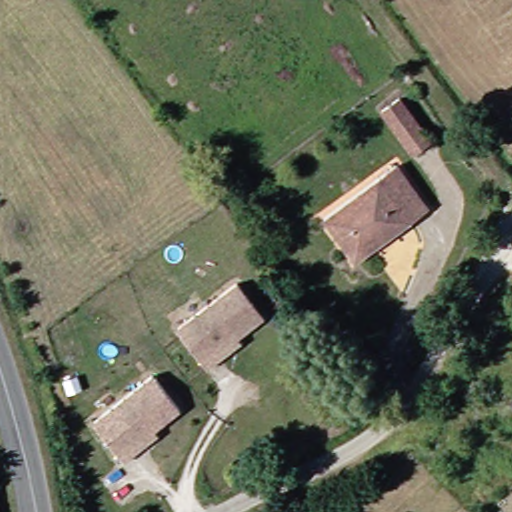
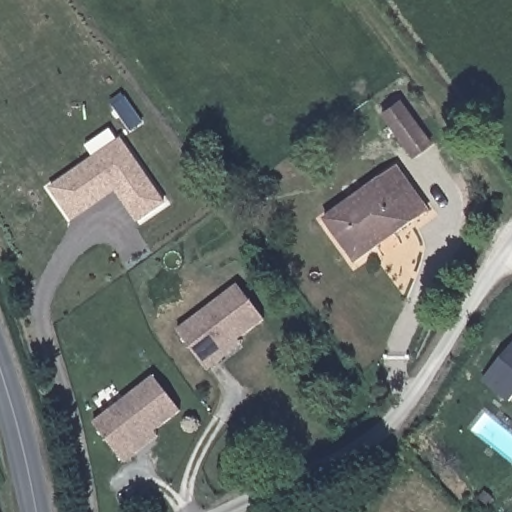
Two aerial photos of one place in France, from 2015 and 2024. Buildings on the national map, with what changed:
unchanged [(417,155),(386,113),(404,100),(434,142),(417,155)]
new [(49,187),(121,137),(167,203),(139,222),(115,189),(72,219),(49,187)]
unchanged [(359,263),(329,218),(399,164),(431,209),(395,235),(359,263)]
unchanged [(220,355),(206,366),(176,326),(237,281),(263,316),(237,335),(241,340),(220,355)]
new [(482,379),(512,342),(512,398),(509,401),(482,379)]
unchanged [(139,447),(126,457),(96,417),(157,372),(183,407),(156,426),(160,431),(139,447)]

